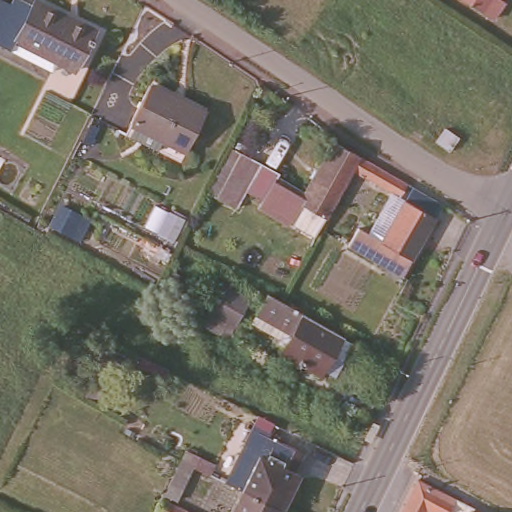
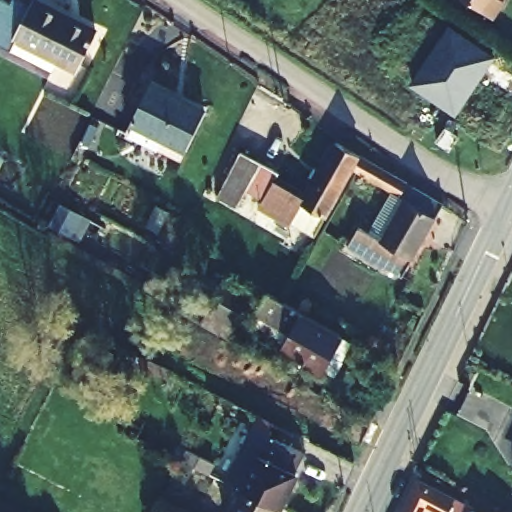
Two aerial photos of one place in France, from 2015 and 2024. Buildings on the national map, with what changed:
unchanged [(58,60),(53,71),(0,45),(0,26),(13,0),(27,0),(33,3),(35,0),(96,30),(77,69),(58,60)]
unchanged [(497,13),(477,0),(506,0),(497,13)]
new [(455,116),(410,85),(450,26),(495,57),(455,116)]
unchanged [(187,155),(131,128),(155,78),(211,106),(187,155)]
unchanged [(448,150),(436,142),(445,129),(458,138),(448,150)]
unchanged [(257,207),(259,205),(263,199),(246,190),(237,208),(226,202),(217,197),(239,155),(240,152),(275,174),(273,179),(280,182),(302,196),(334,143),(360,155),(365,158),(407,182),(400,195),(357,172),(352,169),(325,216),(302,203),(291,222),(289,225),(257,207)]
unchanged [(402,274),(348,243),(358,225),(380,238),(404,197),(405,198),(412,185),(443,203),(402,274)]
unchanged [(200,323),(207,311),(222,285),(247,299),(232,326),(225,338),(200,323)]
unchanged [(320,372),(283,351),(285,346),(277,341),(280,337),(251,321),(267,292),(293,307),(304,313),(342,334),(320,372)]
unchanged [(293,470),(298,473),(281,508),(243,490),(227,482),(252,427),(302,451),(293,470)]
unchanged [(181,459),(185,452),(212,465),(209,472),(194,465),(177,499),(165,493),(181,459)]
unchanged [(472,509),(477,512),(434,512),(428,508),(426,512),(403,512),(418,480),(455,497),(473,507),(472,509)]
unchanged [(232,512),(243,490),(281,508),(279,512),(232,512)]
unchanged [(190,512),(156,512),(162,498),(190,512)]

